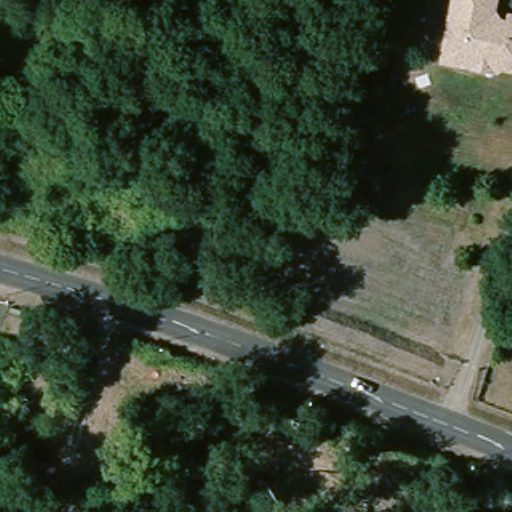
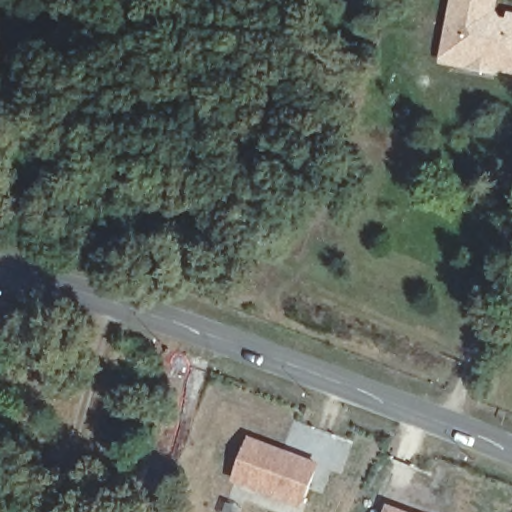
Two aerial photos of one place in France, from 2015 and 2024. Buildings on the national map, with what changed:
unchanged [(492,16),(512,23),(512,91),(462,79),(464,72),(436,63),(449,0),(496,0),(492,16)]
new [(231,481),(249,435),(319,462),(302,506),(231,481)]
new [(408,512),(383,512),(386,504),(408,512)]

